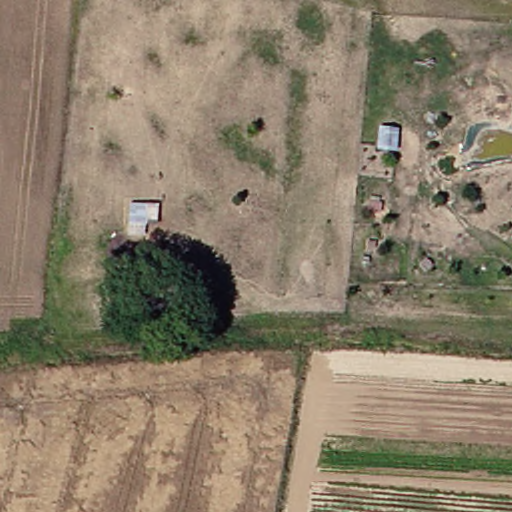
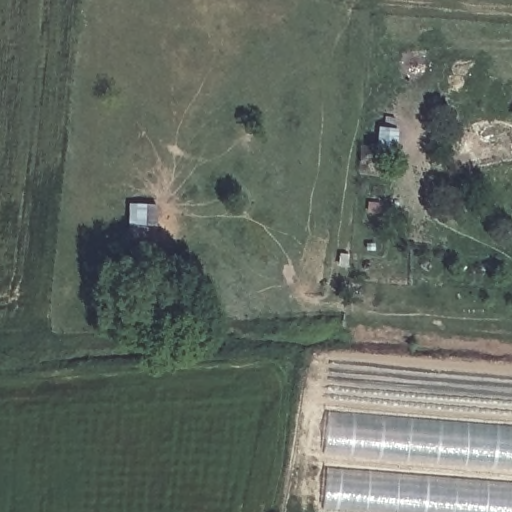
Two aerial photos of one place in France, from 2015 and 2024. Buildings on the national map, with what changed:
new [(328,410),(512,427),(512,468),(323,452),(328,410)]
new [(326,467),(512,484),(512,512),(347,512),(321,510),(326,467)]

